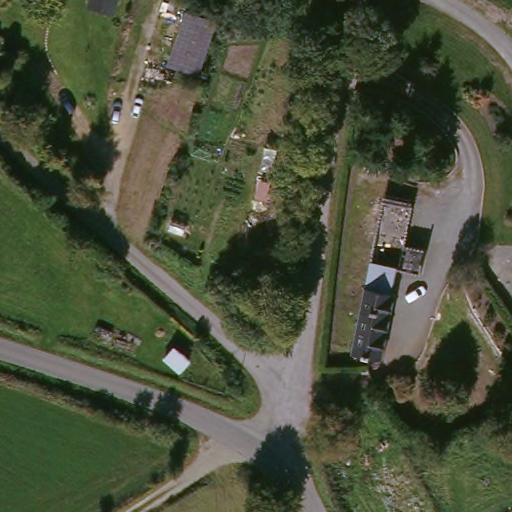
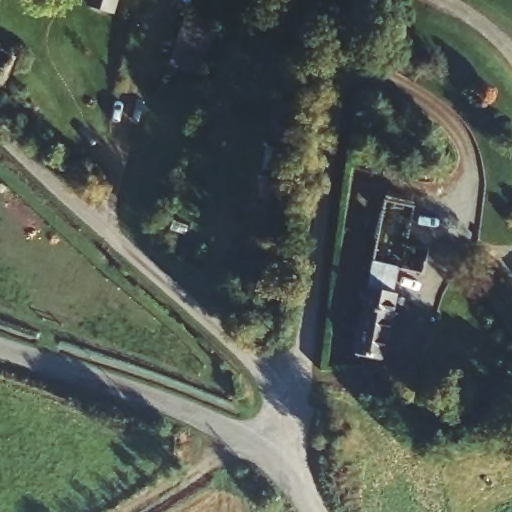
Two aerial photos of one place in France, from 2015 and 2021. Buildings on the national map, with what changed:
unchanged [(118,3),(107,0),(119,0),(118,3)]
unchanged [(205,72),(173,65),(186,10),(218,18),(205,72)]
unchanged [(1,82),(0,82),(0,43),(13,50),(1,82)]
unchanged [(369,285),(383,204),(413,209),(406,249),(428,252),(424,277),(400,273),(396,298),(399,298),(388,365),(356,360),(356,358),(358,354),(345,350),(355,281),(369,285)]
unchanged [(184,281),(177,288),(166,277),(173,270),(184,281)]

